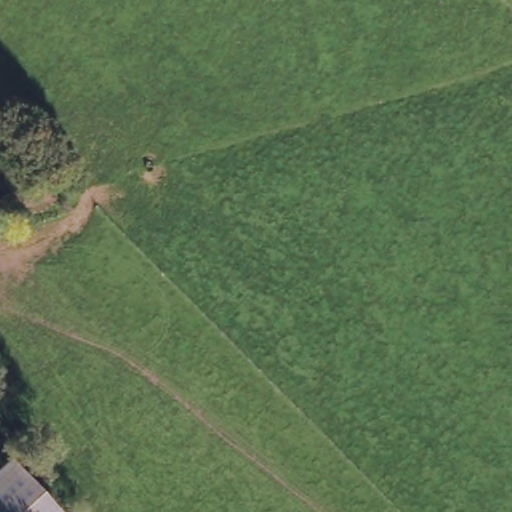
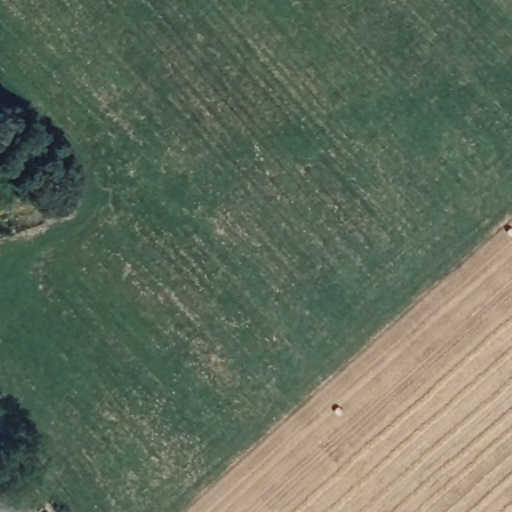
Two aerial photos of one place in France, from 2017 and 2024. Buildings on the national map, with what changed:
new [(21,491),(7,476),(0,483),(0,450),(58,512),(40,512),(21,491)]
new [(0,483),(7,476),(21,491),(40,512),(0,512),(0,483)]

